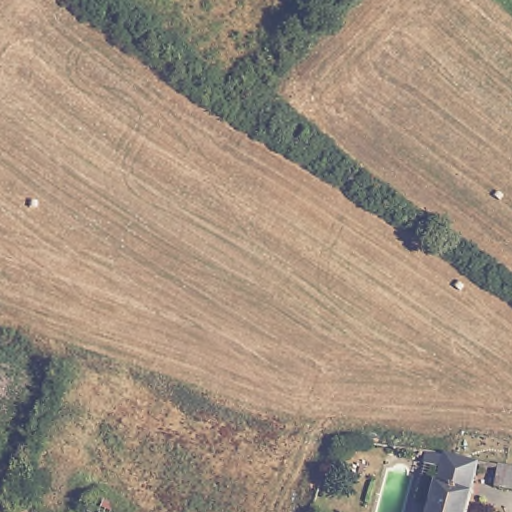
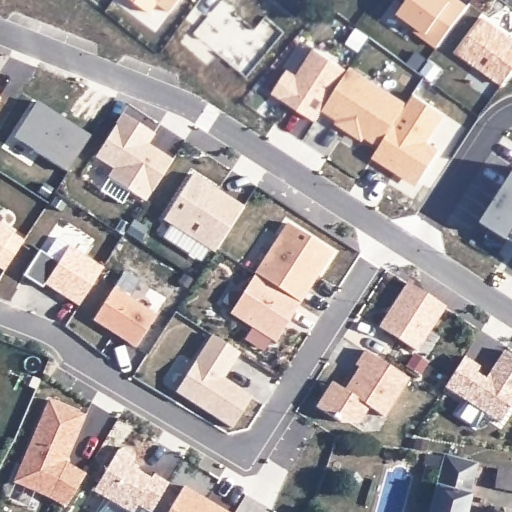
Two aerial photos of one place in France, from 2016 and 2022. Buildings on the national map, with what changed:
new [(170,10),(158,0),(149,11),(135,0),(177,0),(170,10)]
new [(200,0),(228,0),(239,9),(236,14),(256,28),(266,17),(284,31),(246,77),(218,52),(208,64),(179,42),(193,25),(186,19),(200,0)]
new [(409,0),(449,0),(450,0),(460,0),(468,5),(437,45),(415,30),(419,25),(400,12),(409,0)]
new [(512,37),(512,69),(501,86),(458,53),(484,16),(512,37)]
new [(288,71),(297,77),(314,50),(348,72),(324,110),(316,122),(273,94),(288,71)]
new [(348,72),(350,69),(407,106),(380,147),(364,136),(362,140),(337,124),(340,120),(324,110),(348,72)]
new [(413,94),(444,114),(428,141),(440,149),(416,186),(372,157),(380,147),(407,106),(413,94)]
new [(38,100),(91,135),(66,171),(15,137),(38,100)]
new [(121,113),(155,134),(150,144),(173,159),(145,201),(108,178),(113,170),(94,157),(121,113)]
new [(222,193),(228,197),(243,207),(214,253),(164,220),(194,175),(222,193)]
new [(512,239),(483,221),(512,175),(512,239)]
new [(300,303),(255,274),(287,224),(333,253),(314,282),(310,288),(300,303)]
new [(11,233),(0,249),(0,226),(11,233)]
new [(5,272),(0,269),(0,249),(11,233),(24,240),(5,272)]
new [(69,247),(103,269),(79,306),(45,284),(69,247)]
new [(42,288),(23,275),(40,248),(60,261),(45,284),(42,288)]
new [(275,343),(230,314),(255,274),(300,303),(290,319),(286,325),(275,343)]
unchanged [(444,308),(418,350),(378,328),(405,283),(444,308)]
new [(114,288),(157,315),(136,348),(94,320),(114,288)]
new [(211,334),(240,352),(225,378),(253,394),(231,428),(176,393),(211,334)]
new [(330,381),(345,388),(359,366),(355,363),(364,348),(410,378),(386,418),(368,407),(359,423),(338,422),(316,407),(330,381)]
new [(480,368),(476,373),(486,380),(504,351),(512,356),(512,404),(500,423),(445,388),(464,358),(480,368)]
new [(49,401),(84,416),(64,463),(86,475),(66,508),(14,483),(49,401)]
new [(121,449),(124,448),(128,448),(130,449),(133,451),(134,454),(135,459),(131,466),(152,479),(155,475),(169,483),(151,512),(149,512),(137,505),(133,512),(130,512),(94,491),(118,451),(121,449)]
unchanged [(478,463),(494,465),(492,477),(475,474),(466,512),(427,512),(443,454),(478,463)]
unchanged [(505,480),(498,479),(500,466),(512,468),(512,491),(503,490),(505,480)]
new [(229,512),(167,512),(183,485),(229,512)]
demolished [(122,512),(84,512),(92,492),(123,512),(122,512)]
new [(129,512),(97,512),(107,498),(118,505),(129,512)]
new [(149,512),(133,512),(137,505),(149,512)]

